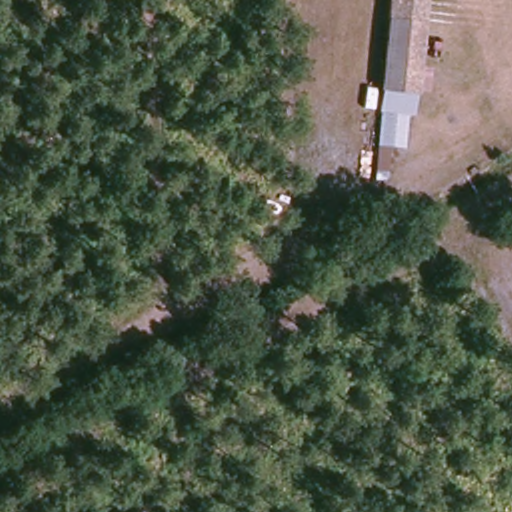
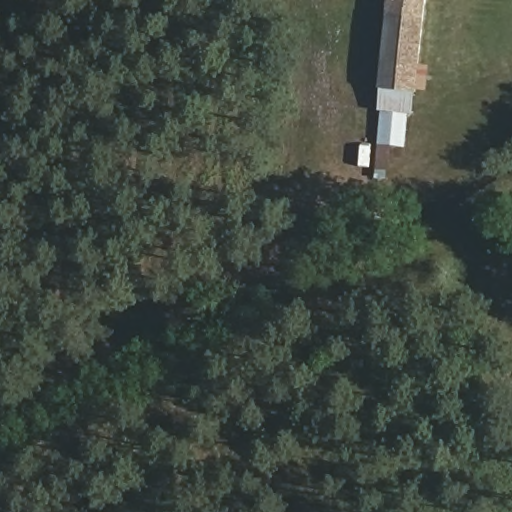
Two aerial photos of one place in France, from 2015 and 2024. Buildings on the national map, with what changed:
unchanged [(383,91),(385,63),(391,0),(426,0),(419,68),(418,76),(417,94),(383,91)]

